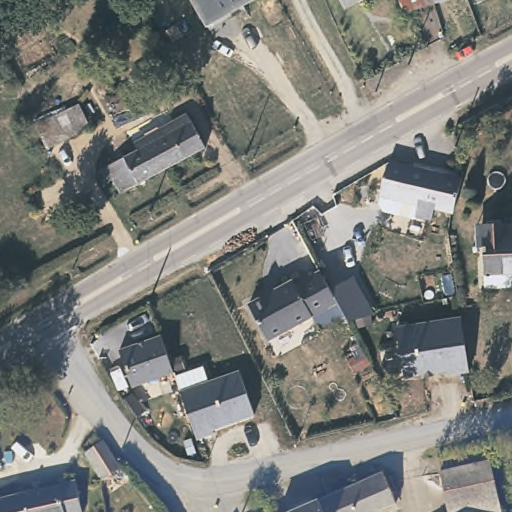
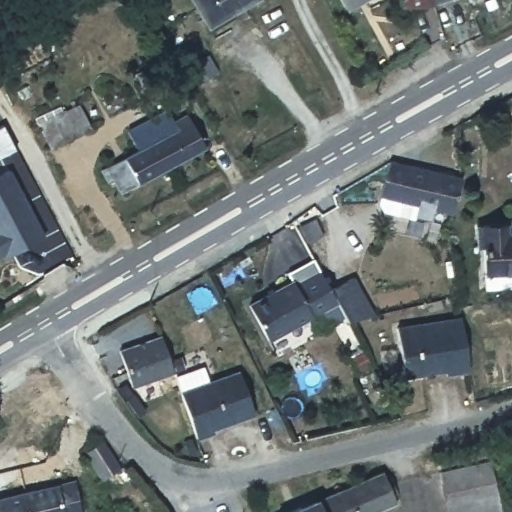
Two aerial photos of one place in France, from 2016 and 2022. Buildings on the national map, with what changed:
unchanged [(257,4),(207,32),(189,0),(255,0),(257,4)]
unchanged [(343,15),(334,0),(369,0),(343,15)]
unchanged [(401,0),(462,0),(436,11),(410,22),(401,0)]
unchanged [(44,125),(68,114),(81,105),(96,127),(83,136),(55,149),(44,125)]
unchanged [(200,147),(117,192),(109,177),(104,181),(97,168),(134,148),(130,141),(182,112),(187,119),(200,147)]
unchanged [(387,220),(388,214),(383,213),(391,169),(455,181),(452,216),(437,215),(436,225),(420,222),(419,227),(387,220)]
new [(44,236),(29,245),(27,241),(0,256),(0,174),(9,170),(44,236)]
unchanged [(501,231),(512,230),(512,273),(511,273),(512,288),(485,289),(485,275),(481,227),(500,222),(501,231)]
unchanged [(321,277),(336,299),(271,343),(248,311),(289,282),(292,287),(316,271),(321,277)]
unchanged [(463,318),(468,376),(405,382),(393,326),(463,318)]
unchanged [(161,337),(175,375),(204,361),(210,381),(241,370),(255,421),(194,445),(180,395),(138,407),(116,344),(161,337)]
unchanged [(0,452),(0,431),(5,450),(0,452)]
unchanged [(121,469),(101,480),(87,454),(107,443),(121,469)]
unchanged [(487,461),(502,512),(449,512),(437,467),(447,465),(485,453),(487,461)]
unchanged [(398,501),(374,512),(290,512),(385,470),(398,501)]
unchanged [(0,512),(0,502),(80,485),(85,512),(0,512)]

